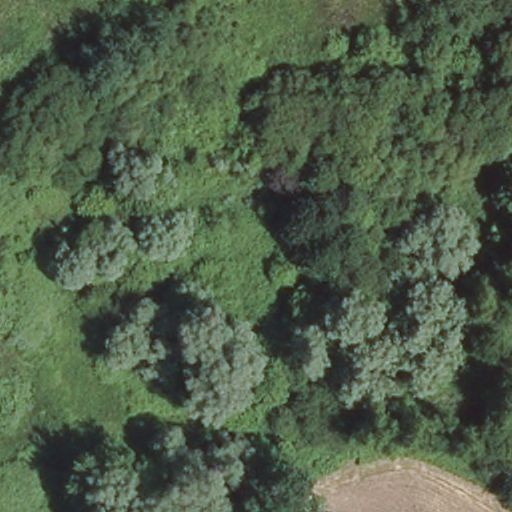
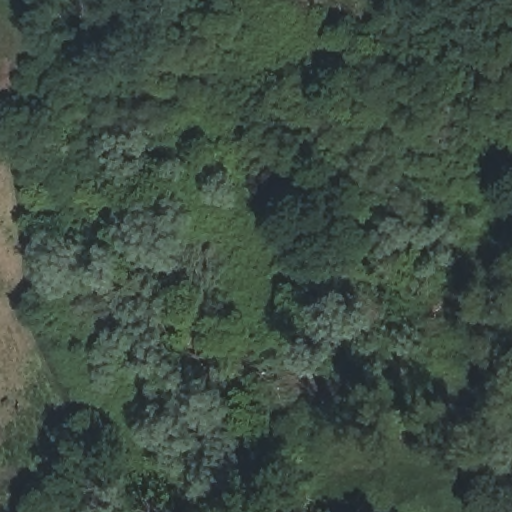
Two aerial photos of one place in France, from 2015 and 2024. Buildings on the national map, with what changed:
[]

